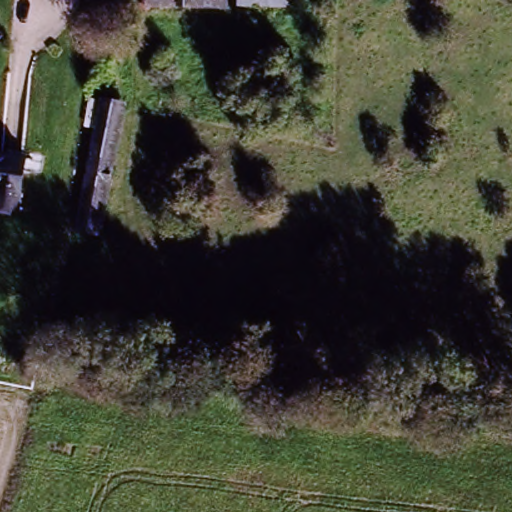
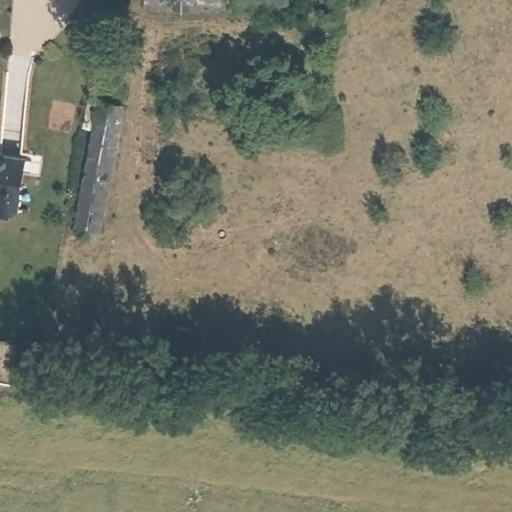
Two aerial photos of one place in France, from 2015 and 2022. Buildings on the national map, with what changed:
unchanged [(141,10),(141,0),(218,0),(217,11),(141,10)]
unchanged [(241,5),(241,0),(285,0),(285,5),(241,5)]
unchanged [(102,234),(82,230),(97,128),(86,126),(89,101),(100,103),(121,105),(102,234)]
unchanged [(0,148),(2,148),(16,150),(14,163),(8,199),(0,197),(0,148)]
unchanged [(166,319),(208,323),(205,356),(162,352),(166,319)]

